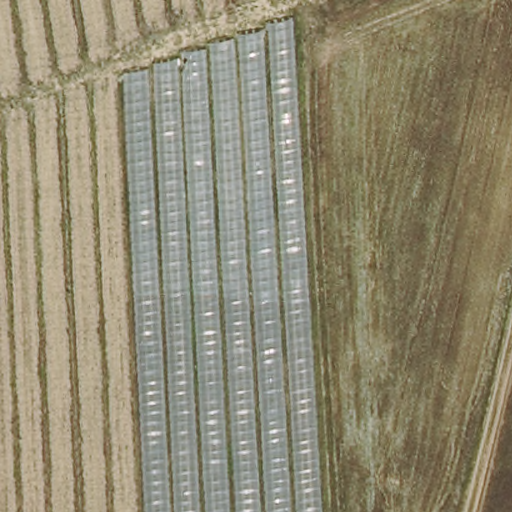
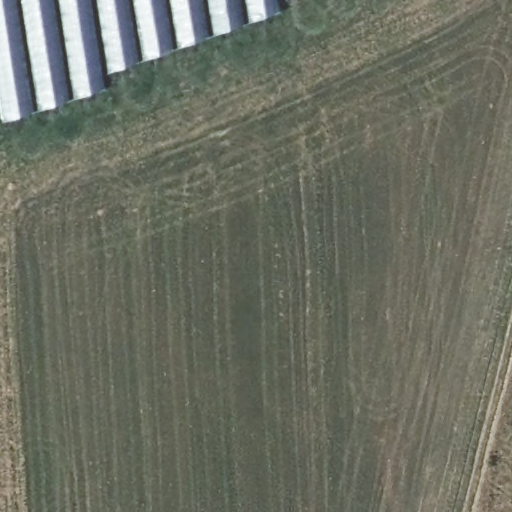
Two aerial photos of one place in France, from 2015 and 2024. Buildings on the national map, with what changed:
demolished [(0,0),(220,0),(0,88),(0,0)]
new [(105,76),(105,89),(3,119),(0,96),(0,0),(278,0),(280,13),(105,76)]
demolished [(317,512),(0,512),(0,118),(290,15),(317,512)]

